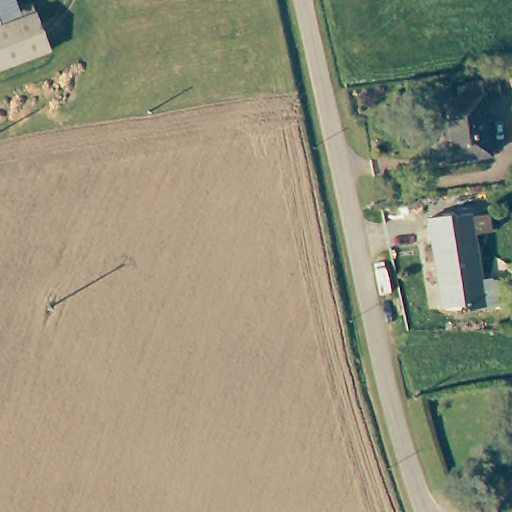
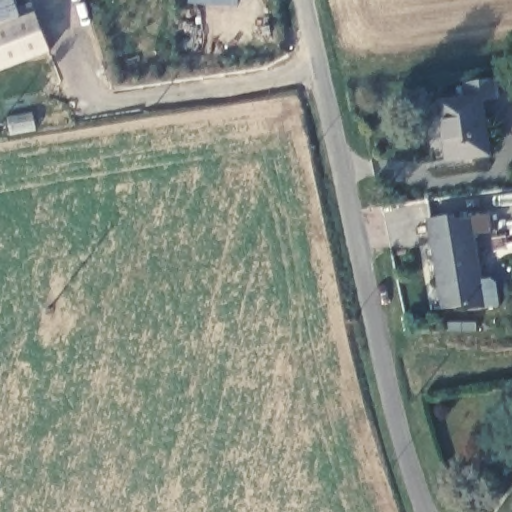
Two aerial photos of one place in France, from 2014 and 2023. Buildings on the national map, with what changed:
new [(190,5),(190,0),(239,0),(238,8),(190,5)]
unchanged [(0,66),(0,25),(21,18),(17,8),(33,2),(37,13),(50,48),(0,66)]
unchanged [(470,102),(468,85),(498,83),(500,100),(486,103),(492,156),(449,161),(442,105),(470,102)]
unchanged [(490,207),(492,223),(434,233),(432,216),(490,207)]
unchanged [(493,271),(499,275),(502,298),(471,302),(466,298),(445,302),(443,288),(446,285),(445,278),(442,279),(434,233),(475,227),(482,273),(493,271)]

